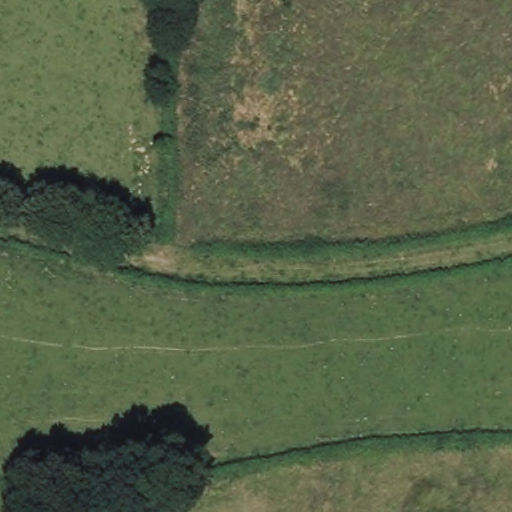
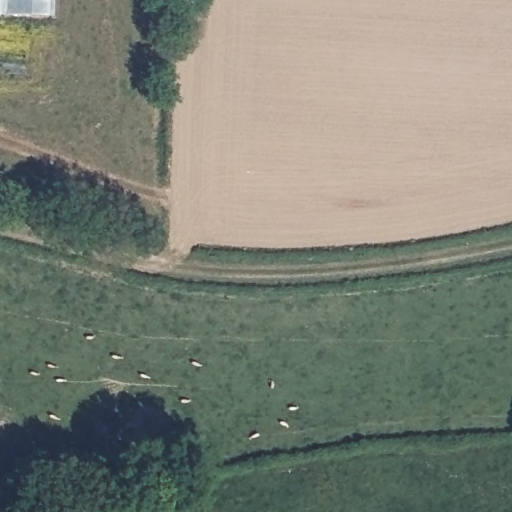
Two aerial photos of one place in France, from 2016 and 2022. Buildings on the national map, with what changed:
new [(0,13),(0,0),(51,0),(50,14),(0,13)]

